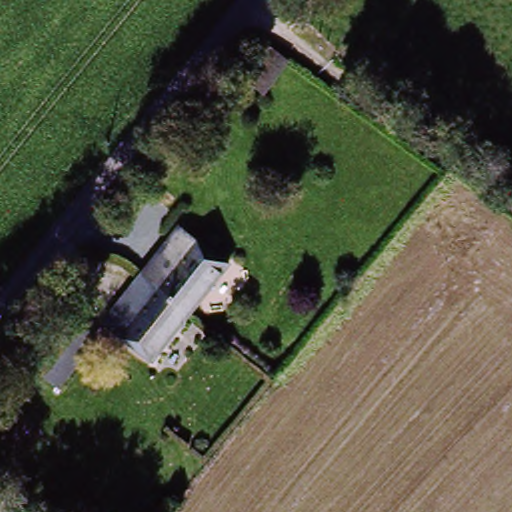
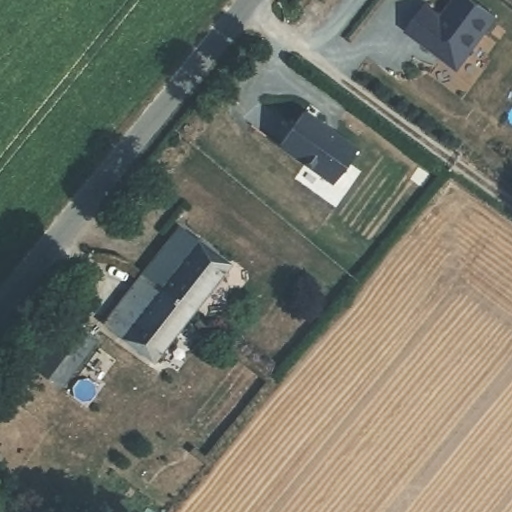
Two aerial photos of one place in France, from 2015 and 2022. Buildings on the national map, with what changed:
new [(422,4),(438,16),(450,0),(471,0),(493,17),(454,68),(403,30),(422,4)]
new [(302,108),(322,122),(321,124),(332,132),(333,130),(354,145),(330,180),(278,143),(302,108)]
unchanged [(175,221),(217,251),(144,358),(102,328),(121,300),(138,276),(175,221)]
unchanged [(94,349),(59,398),(29,375),(63,327),(94,349)]

